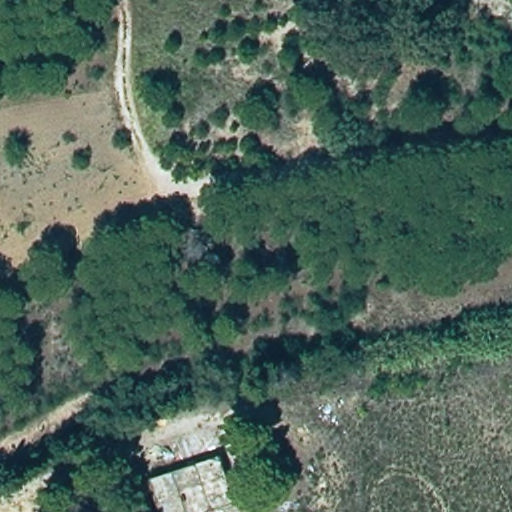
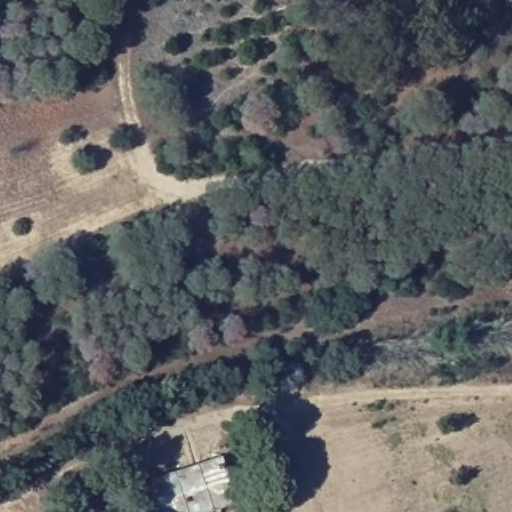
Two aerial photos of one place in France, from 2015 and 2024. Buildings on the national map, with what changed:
unchanged [(218,457),(233,502),(206,512),(158,512),(147,481),(218,457)]

